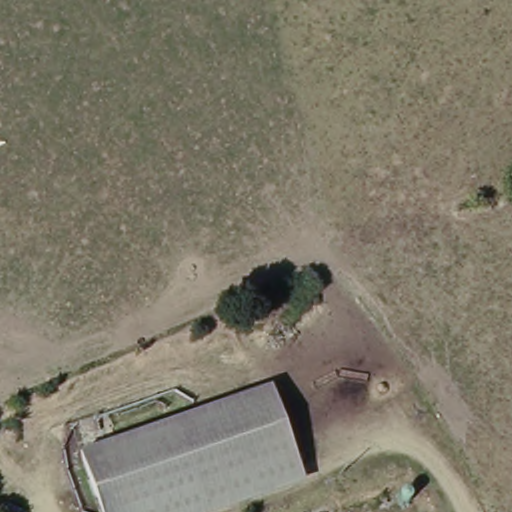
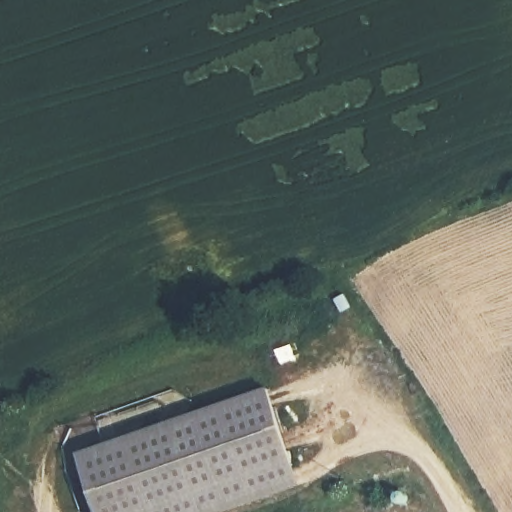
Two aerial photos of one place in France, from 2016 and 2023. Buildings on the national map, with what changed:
unchanged [(271,388),(304,486),(227,512),(100,512),(80,453),(271,388)]

